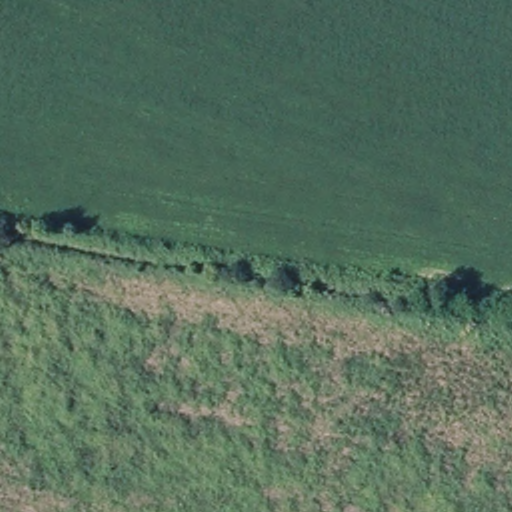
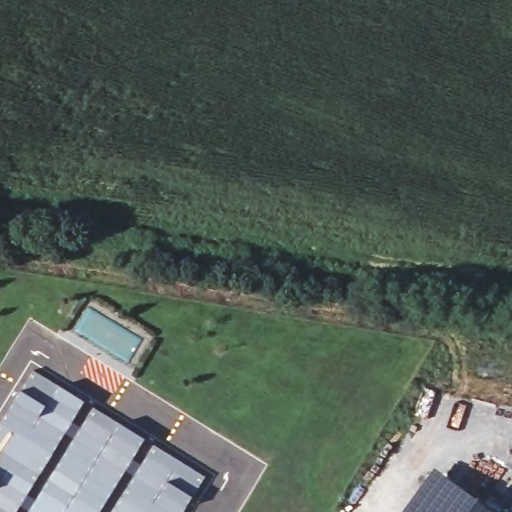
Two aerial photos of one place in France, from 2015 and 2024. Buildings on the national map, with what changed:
new [(0,466),(0,454),(14,432),(0,424),(33,369),(207,477),(185,512),(0,512),(0,476),(4,469),(0,466)]
new [(433,468),(442,475),(493,512),(402,512),(433,468)]

